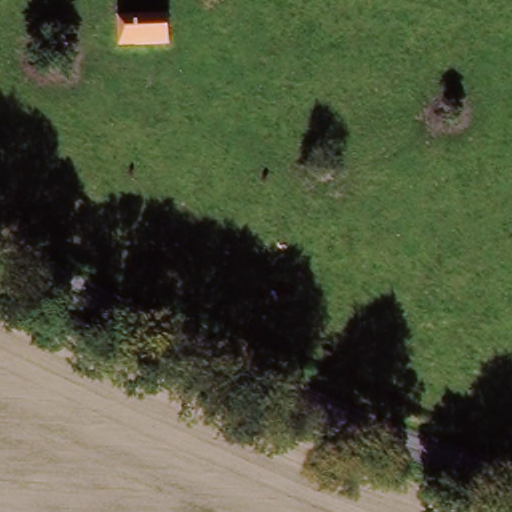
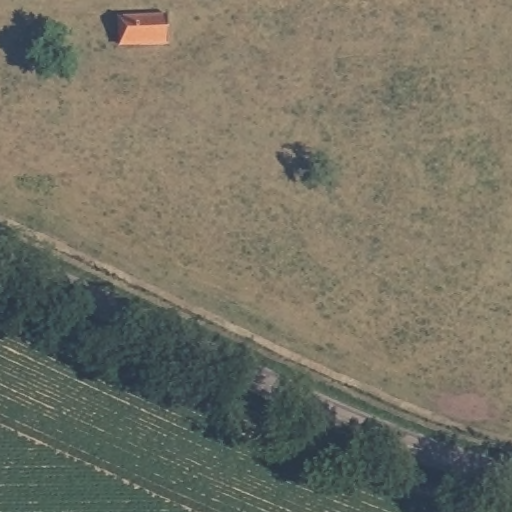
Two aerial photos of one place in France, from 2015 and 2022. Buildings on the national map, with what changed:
unchanged [(120,16),(172,18),(170,45),(119,42),(120,16)]

